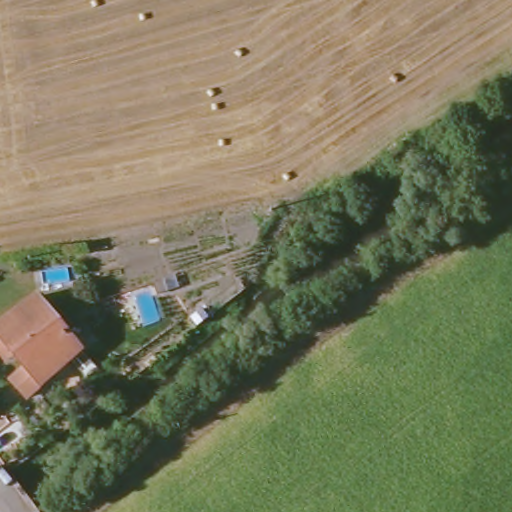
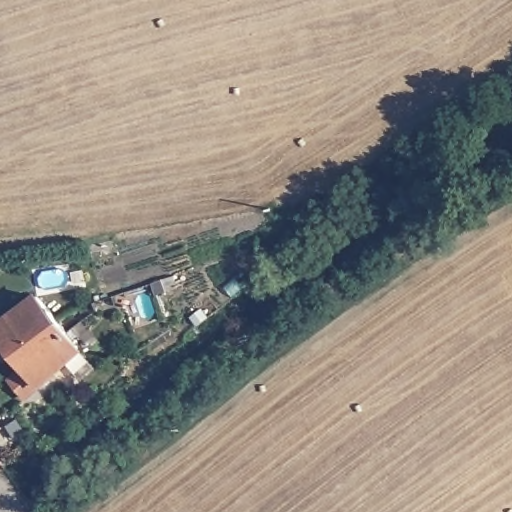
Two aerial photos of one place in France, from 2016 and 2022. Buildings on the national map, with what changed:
unchanged [(0,353),(0,327),(43,294),(65,322),(18,361),(6,348),(0,353)]
unchanged [(12,380),(25,368),(18,361),(65,322),(85,348),(39,387),(27,397),(12,380)]

